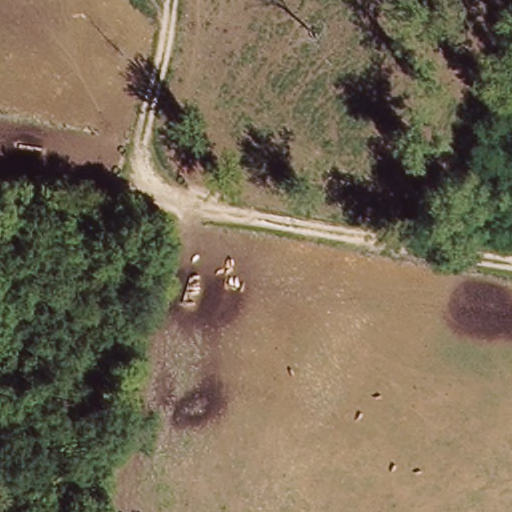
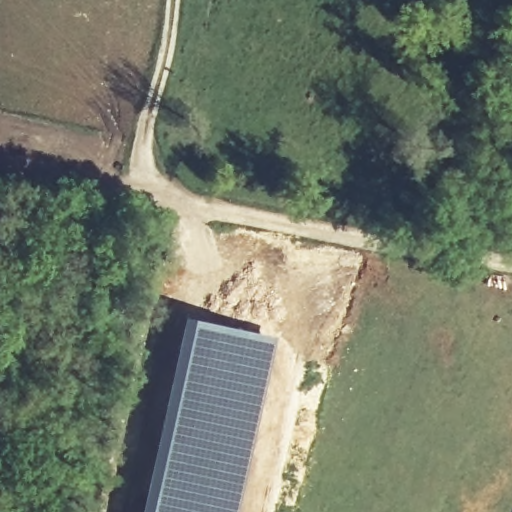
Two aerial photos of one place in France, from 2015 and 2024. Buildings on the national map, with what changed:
new [(185,313),(276,335),(237,512),(141,512),(185,313)]

